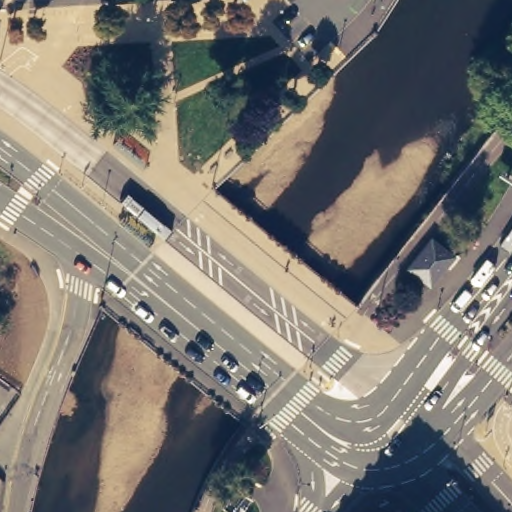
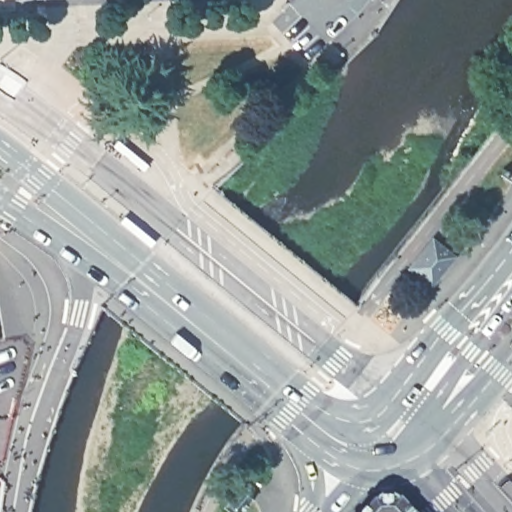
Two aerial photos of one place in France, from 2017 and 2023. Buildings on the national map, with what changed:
unchanged [(33,3),(15,5),(0,6),(0,0),(33,0),(33,3)]
unchanged [(430,279),(410,262),(432,234),(452,251),(430,279)]
unchanged [(240,512),(230,512),(223,506),(229,498),(224,494),(227,490),(232,494),(238,486),(252,497),(240,512)]
unchanged [(408,505),(415,512),(379,512),(383,506),(408,505)]

